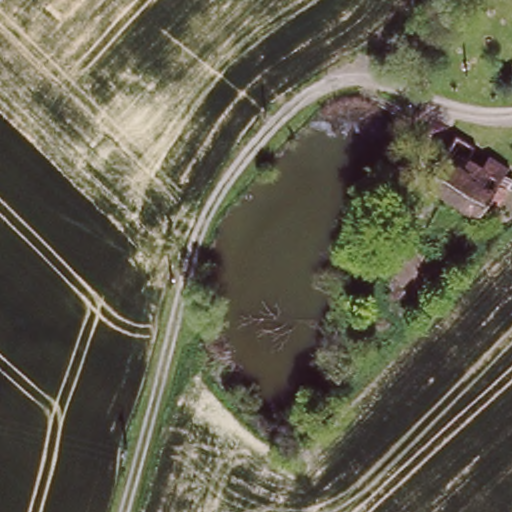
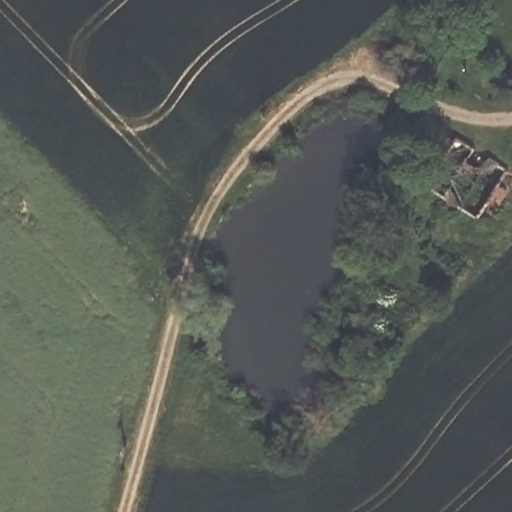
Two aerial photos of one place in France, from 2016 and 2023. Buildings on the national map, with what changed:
unchanged [(456,133),(475,145),(469,156),(483,164),(490,153),(507,164),(478,212),(425,180),(456,133)]

